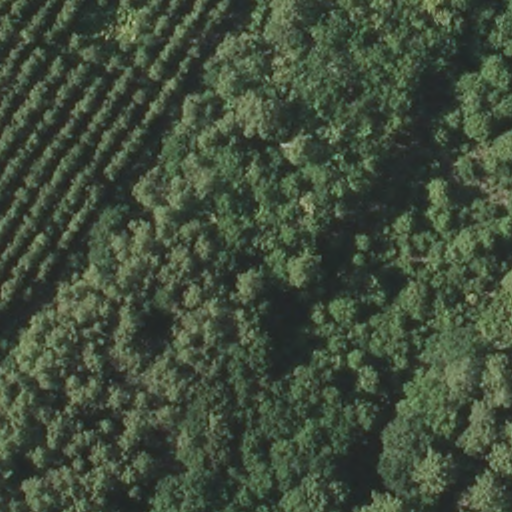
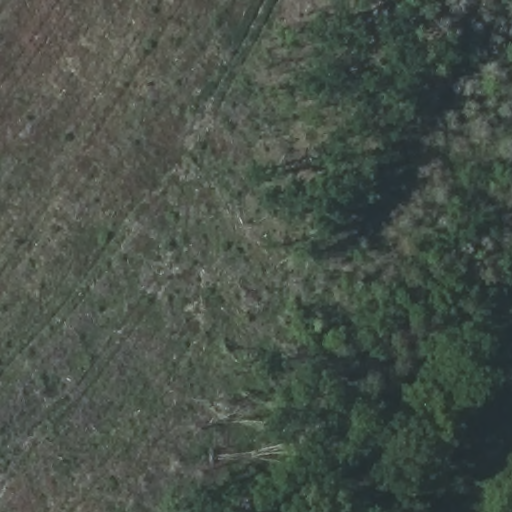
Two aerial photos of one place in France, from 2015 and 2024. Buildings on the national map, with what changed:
[]

